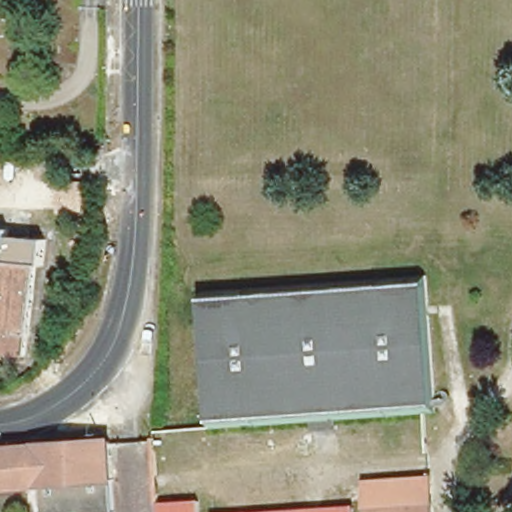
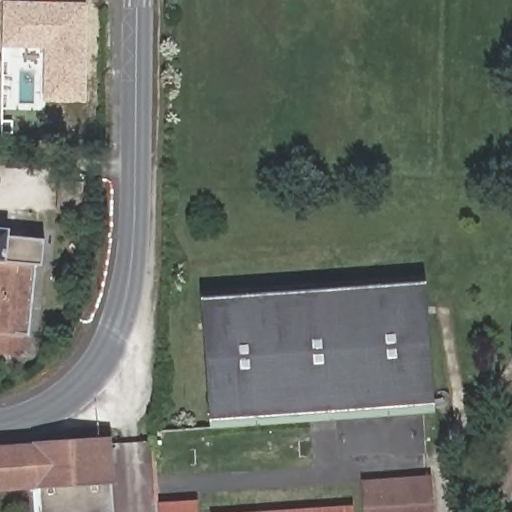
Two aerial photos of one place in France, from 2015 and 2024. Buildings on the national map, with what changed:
new [(88,4),(85,103),(43,101),(44,50),(2,49),(3,1),(88,4)]
unchanged [(10,235),(45,239),(42,265),(36,265),(30,334),(27,334),(25,354),(0,352),(0,228),(10,230),(10,235)]
unchanged [(433,410),(207,423),(200,298),(426,286),(433,410)]
unchanged [(40,512),(39,486),(0,488),(0,444),(112,437),(118,507),(40,512)]
unchanged [(158,504),(196,501),(197,512),(158,512),(158,504)]
unchanged [(368,508),(433,504),(433,512),(368,512),(368,508)]
unchanged [(354,508),(354,512),(276,512),(354,508)]

